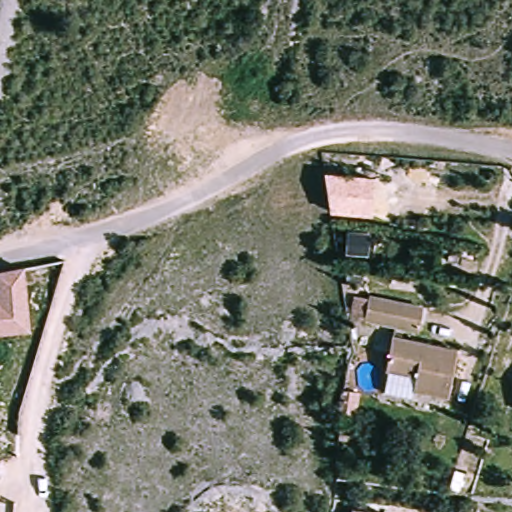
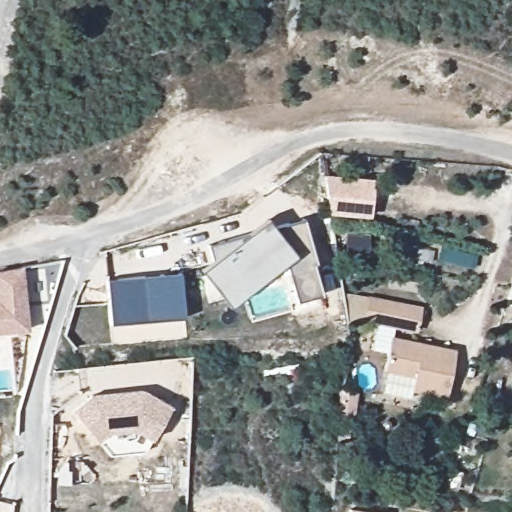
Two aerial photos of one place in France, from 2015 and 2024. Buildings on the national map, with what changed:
unchanged [(324,174),(375,181),(370,219),(332,215),(324,174)]
new [(287,262),(230,307),(202,271),(212,262),(208,248),(250,233),(267,219),(274,228),(303,220),(322,296),(297,303),(288,276),(287,262)]
unchanged [(28,330),(0,332),(0,271),(25,268),(28,330)]
new [(105,282),(180,275),(183,318),(110,325),(105,282)]
unchanged [(418,332),(350,319),(352,295),(369,300),(370,295),(422,306),(426,310),(418,332)]
unchanged [(392,385),(400,362),(388,358),(401,331),(462,350),(452,387),(425,381),(419,394),(392,385)]
new [(98,443),(72,413),(91,396),(142,390),(170,408),(150,442),(143,453),(110,456),(98,443)]

